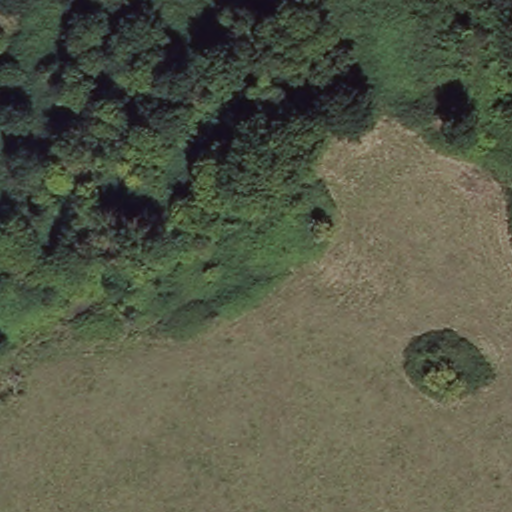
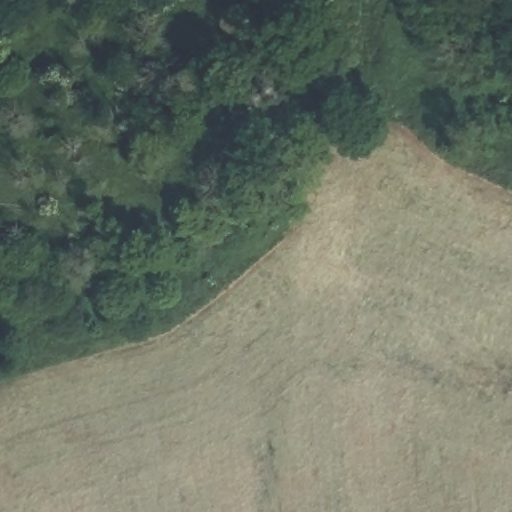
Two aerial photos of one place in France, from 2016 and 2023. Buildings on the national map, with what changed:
unchanged [(193,108),(173,123),(143,85),(163,71),(193,108)]

